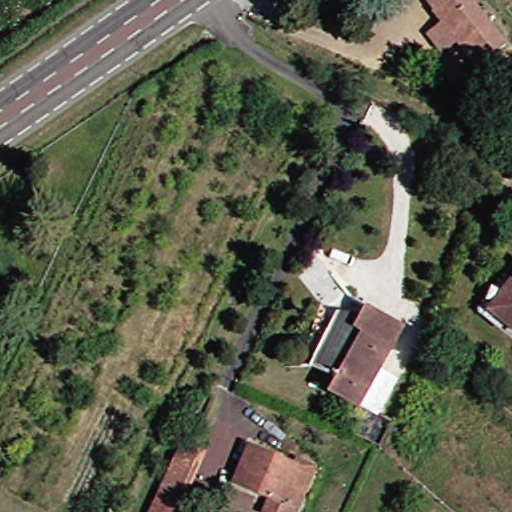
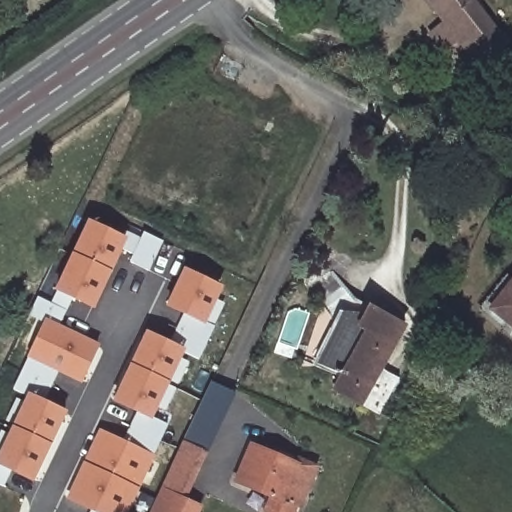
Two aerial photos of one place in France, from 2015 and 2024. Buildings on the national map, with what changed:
unchanged [(429,30),(445,17),(437,7),(438,6),(433,0),(478,0),(509,39),(479,61),(458,34),(442,47),(429,30)]
new [(91,218),(126,235),(94,302),(59,286),(91,218)]
new [(145,232),(162,241),(148,270),(146,271),(129,264),(145,232)]
new [(123,440),(138,409),(115,398),(148,331),(170,342),(185,311),(169,304),(186,268),(220,285),(204,319),(214,324),(198,357),(182,349),(150,414),(166,422),(123,512),(101,512),(91,507),(68,496),(100,429),(123,440)]
unchanged [(512,284),(512,325),(492,309),(512,284)]
new [(14,387),(48,322),(31,313),(39,297),(67,310),(60,325),(99,344),(82,378),(60,368),(45,401),(66,411),(34,479),(13,469),(4,485),(0,483),(0,454),(29,395),(14,387)]
unchanged [(337,390),(344,377),(324,365),(349,319),(364,327),(374,309),(407,328),(371,392),(364,405),(337,390)]
unchanged [(234,482),(249,446),(295,466),(298,460),(316,467),(299,508),(296,506),(294,512),(264,512),(270,497),(234,482)]
unchanged [(199,503),(194,512),(165,512),(174,492),(199,503)]

